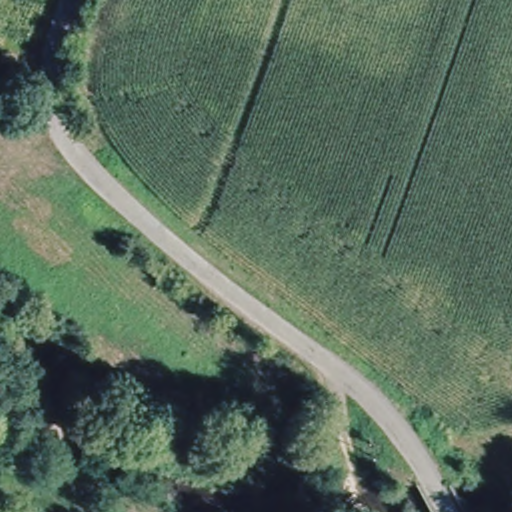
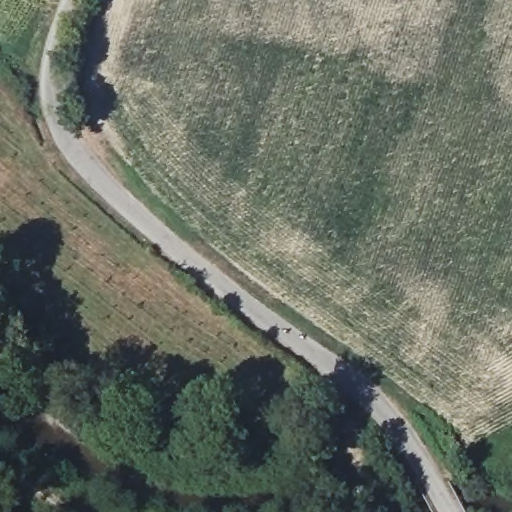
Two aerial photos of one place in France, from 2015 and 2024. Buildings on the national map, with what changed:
[]

